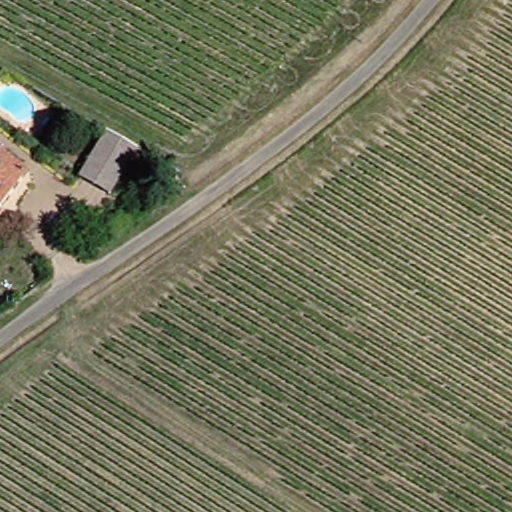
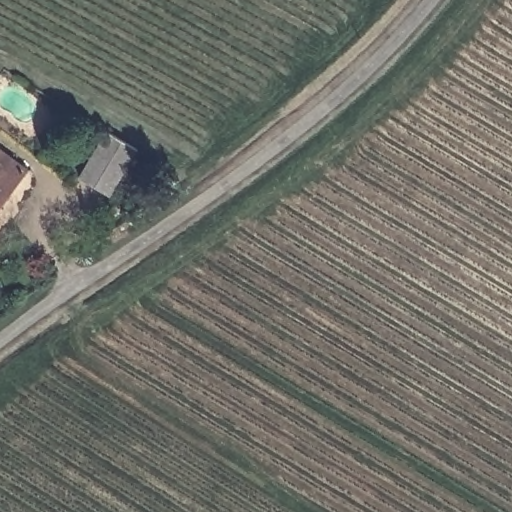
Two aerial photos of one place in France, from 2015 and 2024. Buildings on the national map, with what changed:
unchanged [(145,161),(115,203),(65,173),(97,128),(145,161)]
unchanged [(0,221),(0,156),(28,179),(0,221)]

